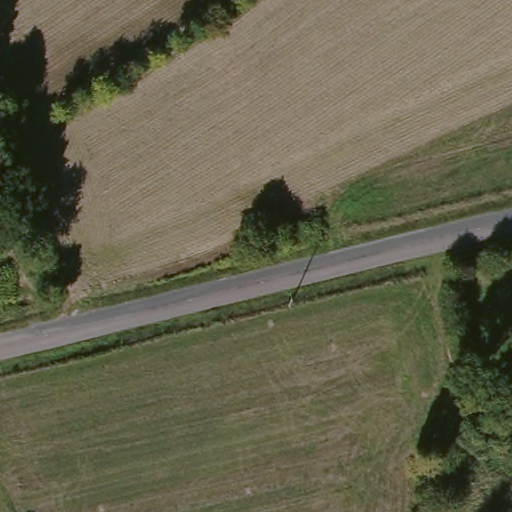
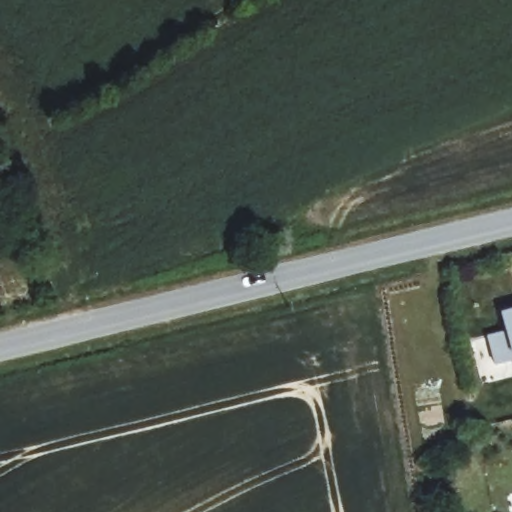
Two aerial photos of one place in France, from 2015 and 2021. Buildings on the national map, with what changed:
new [(493,364),(488,335),(506,331),(501,311),(512,308),(512,360),(493,364)]

